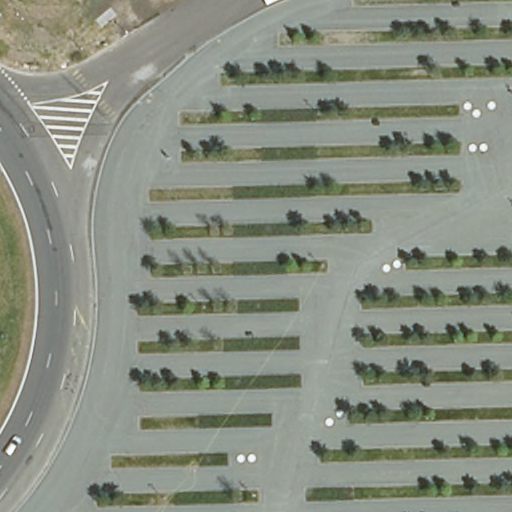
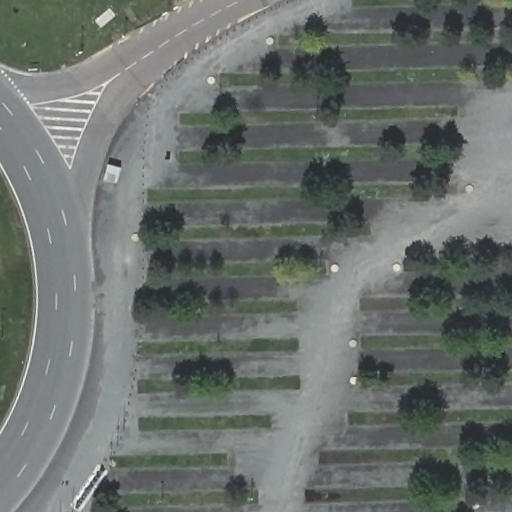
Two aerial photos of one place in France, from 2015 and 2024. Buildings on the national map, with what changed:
[]

